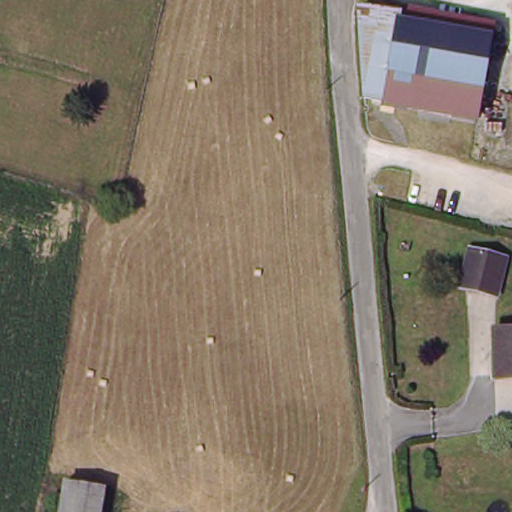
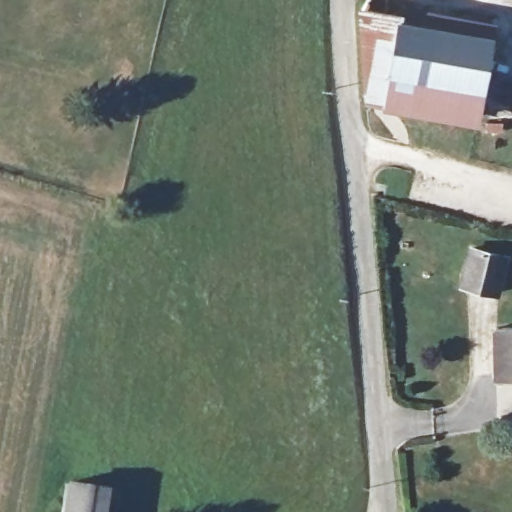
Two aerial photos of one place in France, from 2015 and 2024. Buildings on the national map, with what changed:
unchanged [(489,40),(477,91),(470,123),(363,96),(358,6),(489,40)]
unchanged [(461,279),(465,267),(468,245),(504,256),(494,291),(468,282),(461,279)]
unchanged [(494,370),(494,325),(512,325),(512,370),(494,370)]
unchanged [(66,483),(79,484),(106,488),(103,512),(62,512),(66,483)]

